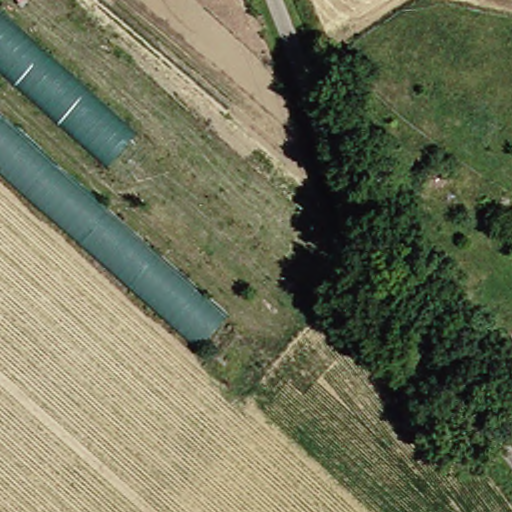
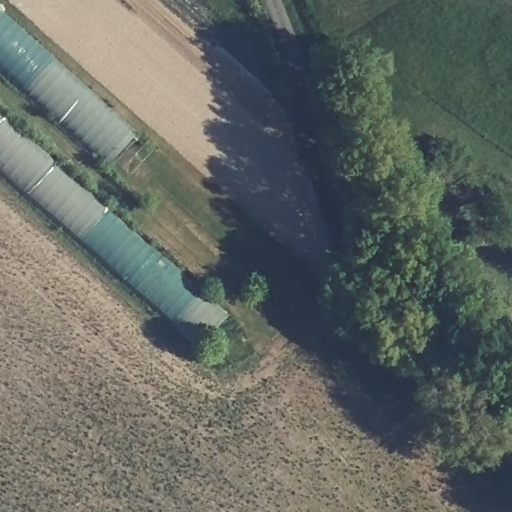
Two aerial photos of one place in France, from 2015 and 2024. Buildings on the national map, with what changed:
unchanged [(0,78),(0,15),(151,144),(116,189),(0,78)]
unchanged [(205,352),(0,173),(0,113),(230,317),(205,352)]

